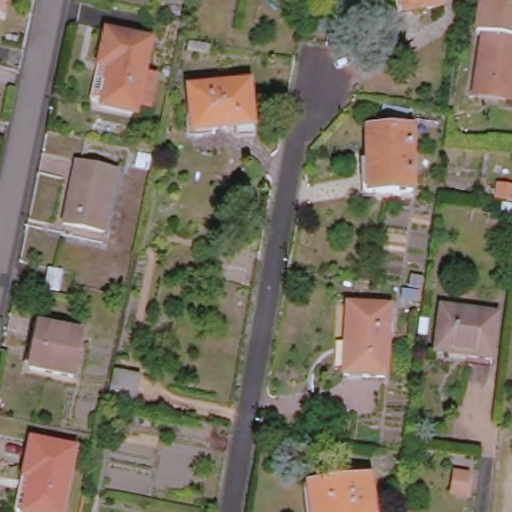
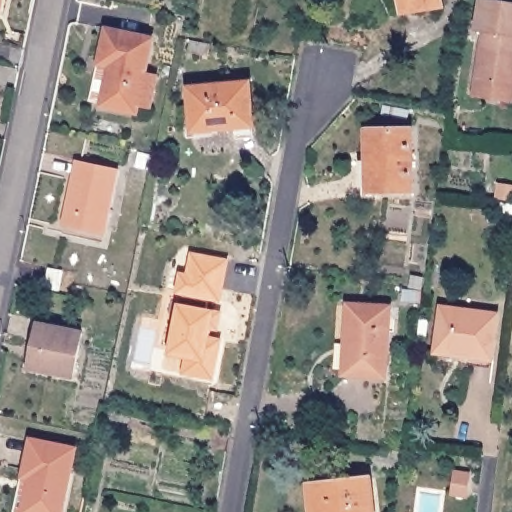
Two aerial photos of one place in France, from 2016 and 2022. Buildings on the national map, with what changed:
unchanged [(2,15),(0,14),(0,0),(4,0),(2,15)]
unchanged [(402,4),(402,0),(443,0),(444,6),(422,9),(404,12),(402,4)]
unchanged [(485,39),(478,38),(484,4),(512,9),(512,91),(479,87),(485,39)]
unchanged [(107,107),(112,76),(115,76),(117,68),(105,66),(112,30),(157,39),(142,114),(107,107)]
unchanged [(190,88),(250,83),(254,126),(195,132),(190,88)]
unchanged [(368,131),(412,131),(414,191),(370,193),(368,131)]
unchanged [(65,224),(78,163),(117,171),(105,233),(65,224)]
new [(215,330),(209,328),(207,338),(219,340),(210,379),(182,373),(185,355),(169,351),(180,293),(175,292),(178,274),(185,275),(190,253),(225,261),(218,301),(207,299),(205,310),(212,312),(218,313),(215,330)]
unchanged [(48,288),(52,270),(64,273),(60,290),(48,288)]
unchanged [(347,374),(351,305),(390,308),(385,376),(347,374)]
unchanged [(470,358),(470,353),(437,348),(442,307),(499,315),(492,361),(470,358)]
unchanged [(30,368),(40,324),(83,333),(74,377),(30,368)]
unchanged [(110,400),(114,375),(140,379),(135,404),(110,400)]
unchanged [(24,477),(32,440),(77,449),(64,512),(22,512),(28,478),(24,477)]
unchanged [(370,480),(373,512),(314,512),(311,486),(370,480)]

